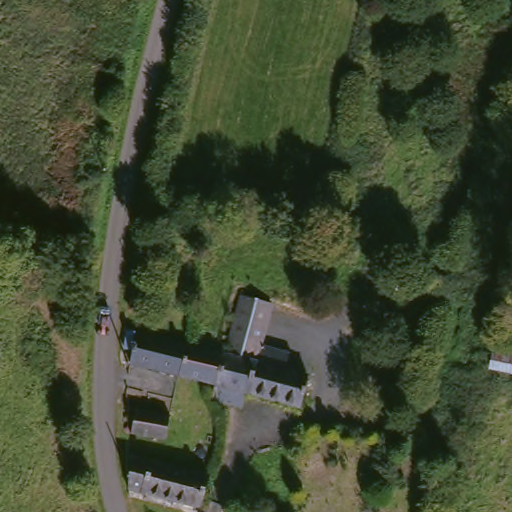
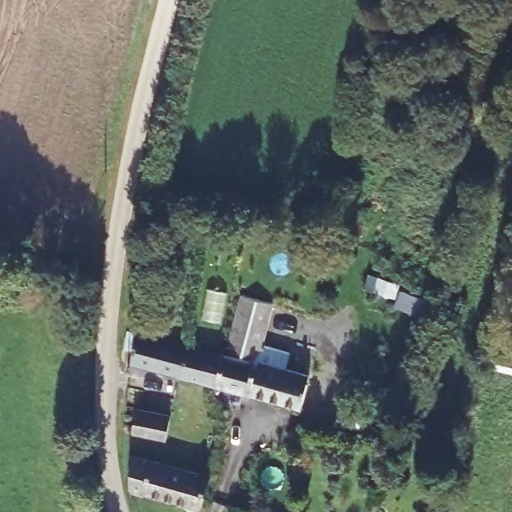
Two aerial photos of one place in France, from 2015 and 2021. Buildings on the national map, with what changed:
unchanged [(260,362),(229,353),(247,292),(278,301),(266,343),(290,349),(285,369),(260,362)]
unchanged [(126,359),(129,347),(124,344),(128,331),(136,333),(138,327),(144,329),(186,340),(176,374),(126,359)]
unchanged [(221,351),(213,386),(176,374),(186,340),(221,351)]
unchanged [(250,395),(233,390),(226,412),(221,411),(207,407),(213,386),(221,351),(229,353),(260,362),(250,395)]
unchanged [(512,355),(512,379),(493,376),(496,352),(512,355)]
unchanged [(251,397),(250,395),(260,362),(285,369),(308,376),(300,409),(251,397)]
unchanged [(162,443),(128,438),(136,411),(166,419),(162,443)]
unchanged [(123,489),(131,456),(152,461),(205,475),(208,476),(198,507),(197,509),(143,494),(123,489)]

